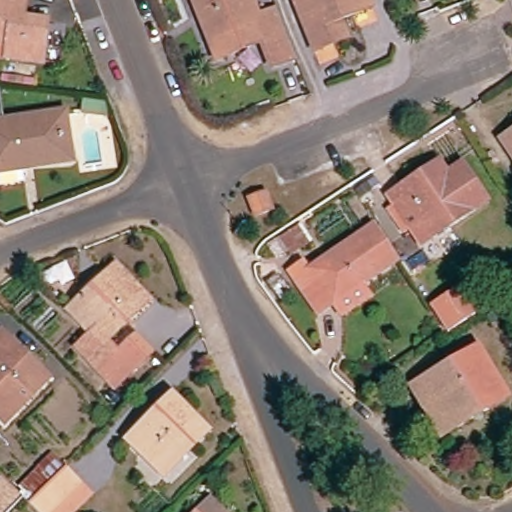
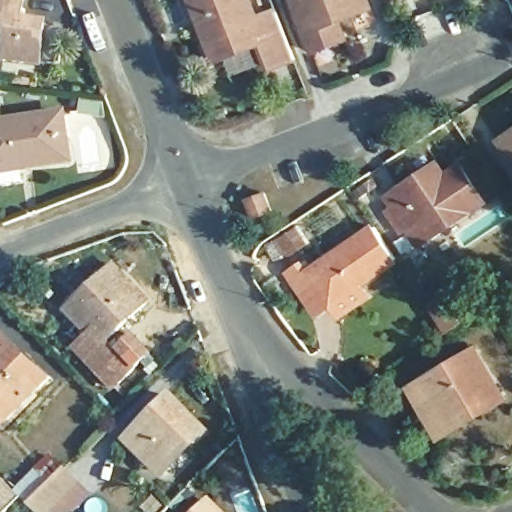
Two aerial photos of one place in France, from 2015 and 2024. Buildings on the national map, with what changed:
unchanged [(29,21),(50,25),(46,61),(12,57),(14,48),(0,46),(0,0),(31,0),(29,21)]
unchanged [(176,1),(175,0),(180,0),(176,1)]
unchanged [(187,0),(248,0),(258,25),(277,18),(296,68),(269,79),(259,52),(214,69),(207,52),(197,26),(187,0)]
unchanged [(372,16),(340,28),(347,48),(313,61),(291,2),(298,0),(366,0),(372,16)]
unchanged [(22,170),(0,174),(0,124),(65,114),(68,135),(72,162),(22,170)]
unchanged [(512,136),(512,142),(509,138),(512,136)]
unchanged [(467,174),(492,211),(427,254),(399,213),(394,206),(442,174),(447,182),(450,186),(467,174)]
unchanged [(266,193),(273,209),(255,216),(249,199),(266,193)]
unchanged [(337,322),(327,309),(313,318),(292,286),(372,231),(394,264),(355,290),(364,304),(337,322)]
unchanged [(150,311),(110,353),(119,363),(137,347),(153,365),(116,400),(77,360),(89,347),(67,322),(84,307),(87,303),(81,298),(92,287),(97,292),(116,275),(150,311)]
unchanged [(483,311),(449,334),(435,313),(469,290),(483,311)]
unchanged [(49,386),(7,431),(0,425),(0,340),(49,386)]
unchanged [(424,410),(413,391),(477,353),(507,402),(485,415),(442,442),(424,410)]
unchanged [(159,472),(128,441),(172,396),(209,432),(192,449),(165,477),(159,472)]
unchanged [(52,457),(65,470),(91,495),(74,512),(37,512),(31,505),(36,500),(22,487),(52,457)]
unchanged [(11,512),(0,512),(0,484),(4,479),(24,499),(11,512)]
unchanged [(221,512),(200,512),(211,501),(221,512)]

